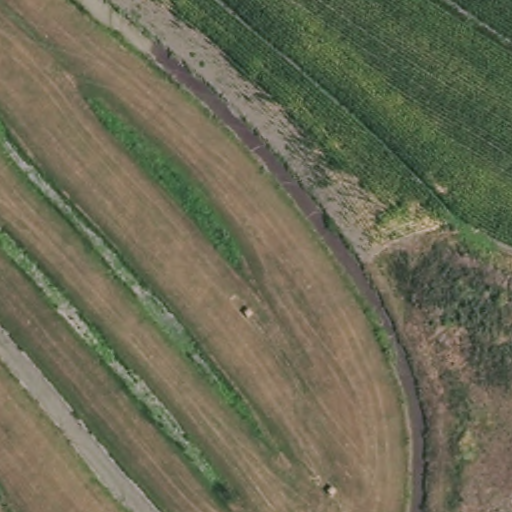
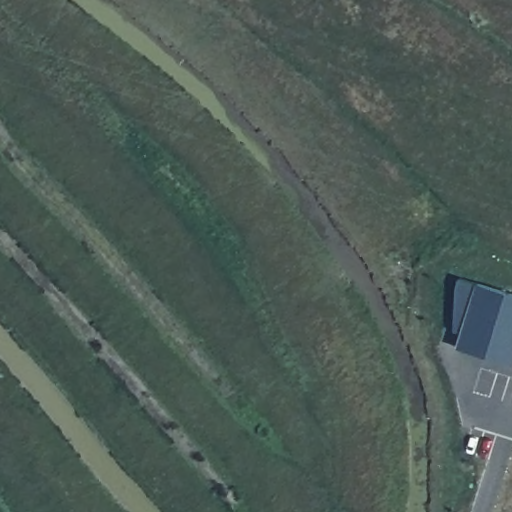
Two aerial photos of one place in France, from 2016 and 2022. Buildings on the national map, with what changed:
new [(512,295),(512,365),(459,349),(463,335),(455,332),(458,288),(460,279),(512,295)]

